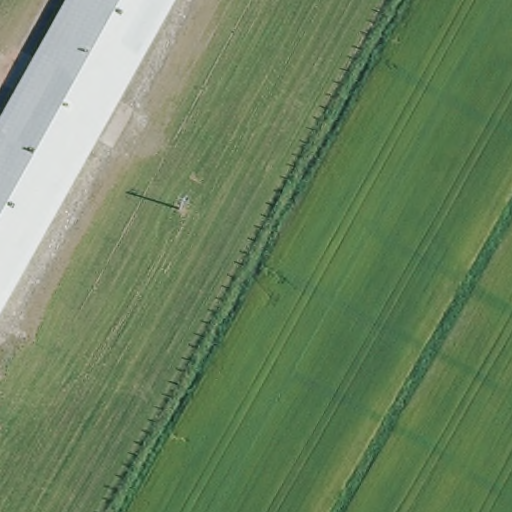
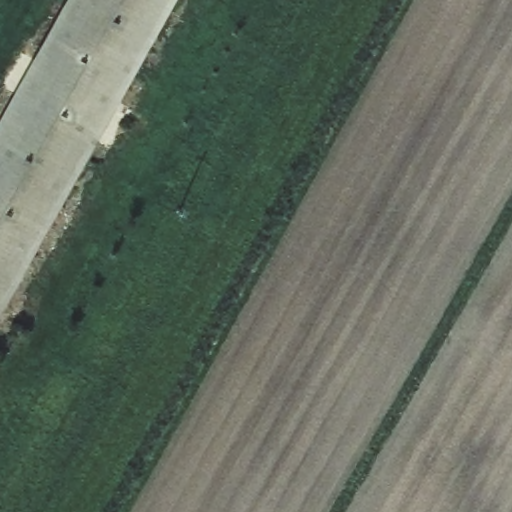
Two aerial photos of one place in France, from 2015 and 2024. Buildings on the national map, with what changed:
unchanged [(0,312),(0,121),(68,0),(174,0),(0,312)]

